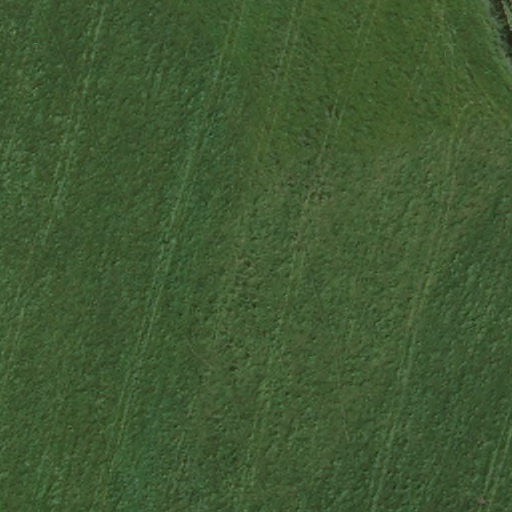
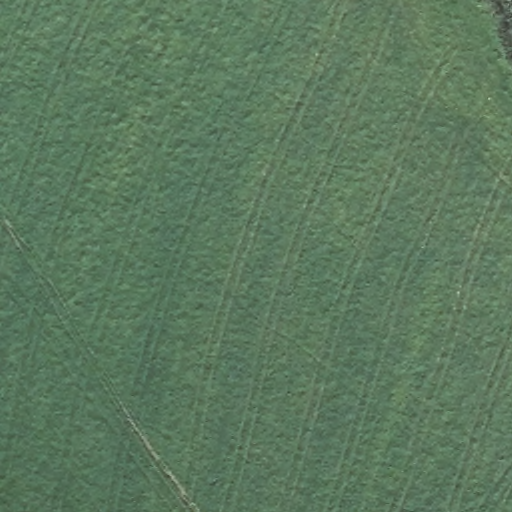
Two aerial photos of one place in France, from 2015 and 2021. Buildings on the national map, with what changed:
[]

